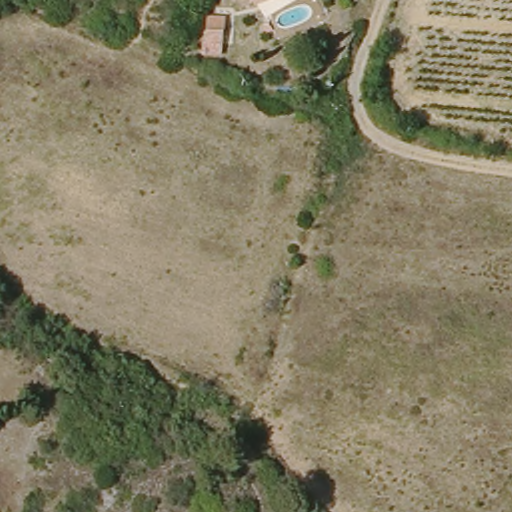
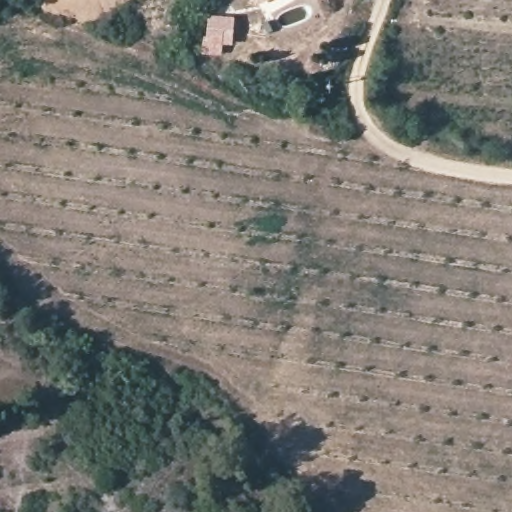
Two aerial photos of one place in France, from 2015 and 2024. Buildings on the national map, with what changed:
unchanged [(207,48),(207,17),(226,17),(225,48),(207,48)]

